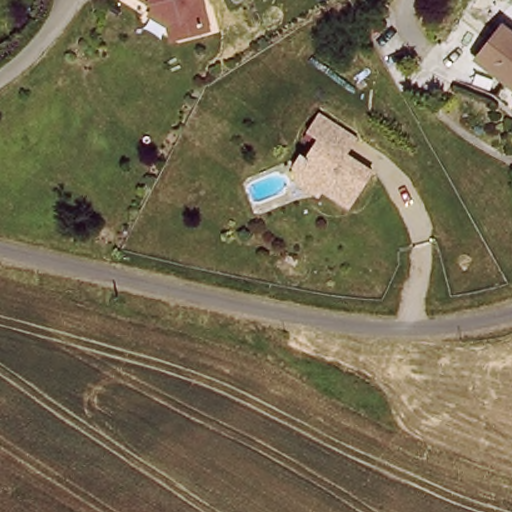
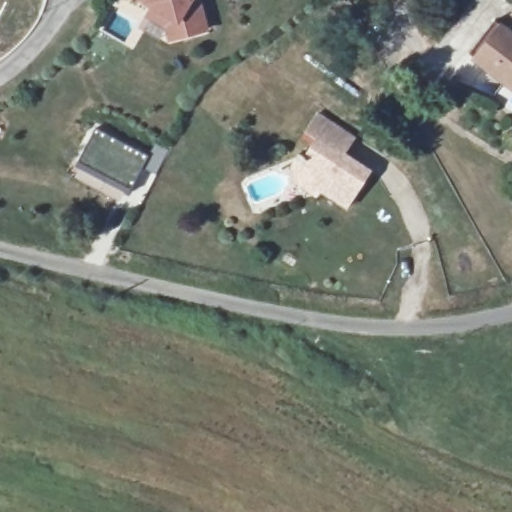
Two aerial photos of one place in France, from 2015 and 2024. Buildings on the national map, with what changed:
unchanged [(171,27),(153,16),(158,8),(144,0),(202,0),(210,31),(186,37),(175,40),(171,27)]
unchanged [(512,109),(495,96),(506,81),(477,59),(502,26),(512,34),(512,109)]
unchanged [(302,185),(299,167),(305,157),(310,160),(322,141),(311,135),(322,117),(356,140),(346,155),(377,176),(355,211),(328,194),(325,199),(302,185)]
new [(77,165),(75,169),(73,168),(93,130),(146,159),(153,146),(167,153),(154,177),(140,170),(126,196),(128,191),(77,165)]

